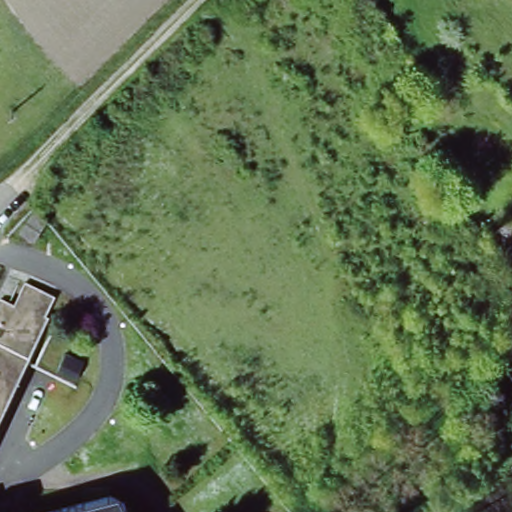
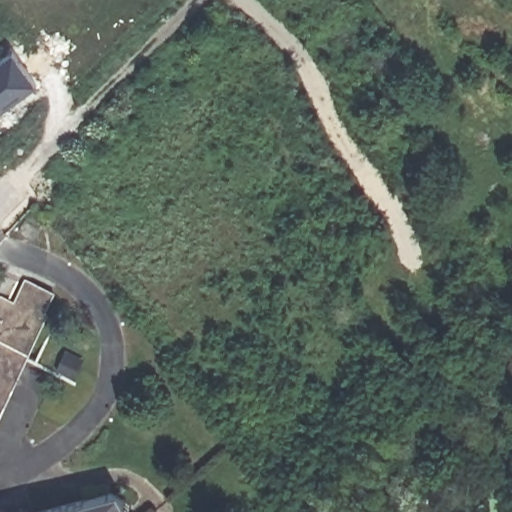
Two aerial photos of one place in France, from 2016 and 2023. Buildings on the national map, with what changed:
new [(36,85),(0,112),(0,60),(12,51),(36,85)]
unchanged [(32,231),(21,223),(33,209),(44,218),(32,231)]
unchanged [(23,308),(35,287),(61,300),(53,316),(55,317),(0,425),(0,315),(8,301),(23,308)]
unchanged [(58,331),(97,351),(81,382),(42,362),(58,331)]
unchanged [(126,512),(71,512),(113,502),(126,512)]
unchanged [(21,512),(11,512),(20,510),(21,512)]

